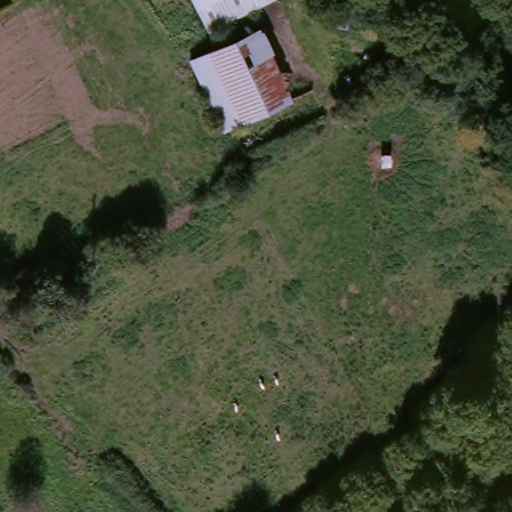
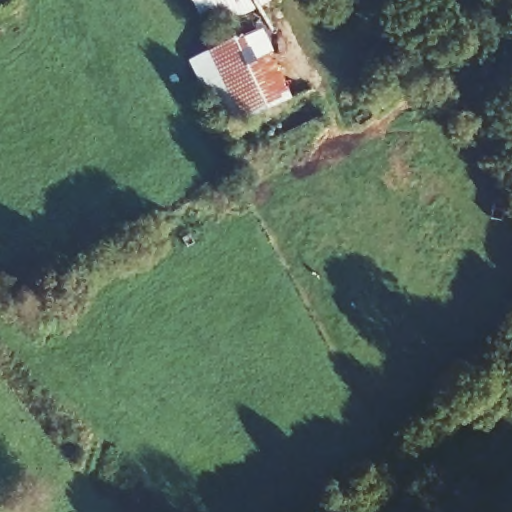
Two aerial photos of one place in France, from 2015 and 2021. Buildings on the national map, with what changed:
unchanged [(294,97),(221,134),(184,60),(211,44),(187,0),(287,0),(255,15),(294,97)]

